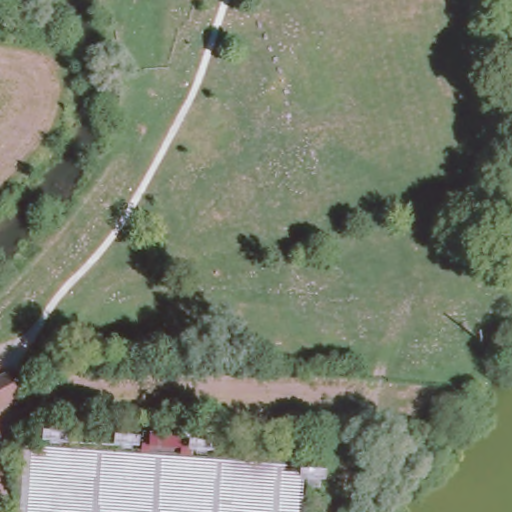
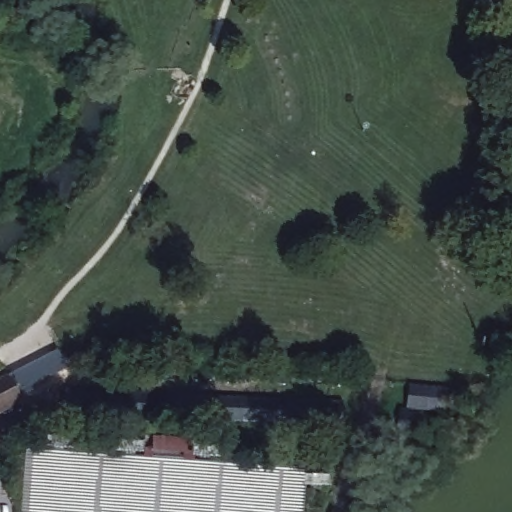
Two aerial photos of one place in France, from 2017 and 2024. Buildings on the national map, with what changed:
unchanged [(0,378),(8,374),(21,401),(0,411),(0,378)]
unchanged [(141,455),(143,431),(193,435),(193,459),(304,469),(301,512),(22,512),(24,448),(141,455)]

